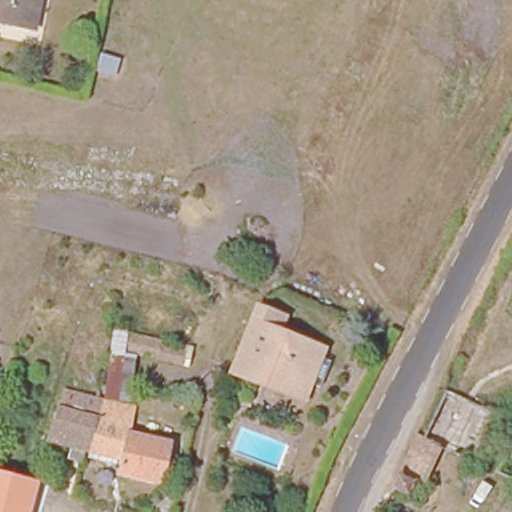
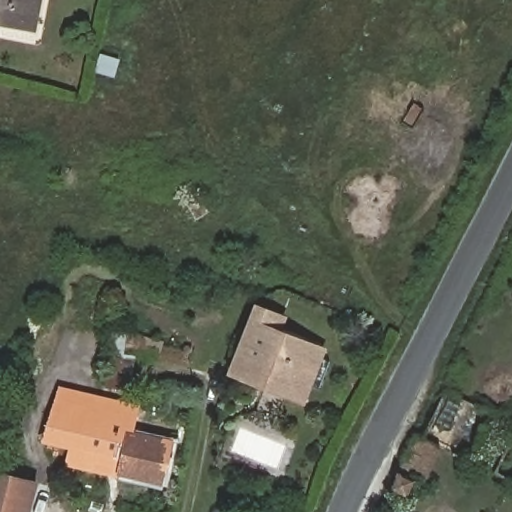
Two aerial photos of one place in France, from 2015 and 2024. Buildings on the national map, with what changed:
unchanged [(0,27),(0,0),(40,0),(33,34),(0,27)]
unchanged [(128,64),(122,82),(104,77),(110,58),(128,64)]
unchanged [(272,338),(318,357),(301,400),(258,382),(256,390),(235,382),(260,317),(278,325),(272,338)]
unchanged [(47,446),(63,395),(97,402),(99,392),(105,392),(113,335),(127,338),(124,360),(135,362),(128,411),(134,412),(128,438),(170,447),(160,489),(119,479),(122,466),(47,446)]
unchanged [(161,347),(160,351),(186,357),(187,352),(193,353),(189,372),(135,358),(135,362),(124,360),(127,338),(161,347)]
unchanged [(418,432),(443,445),(422,486),(412,478),(408,491),(400,490),(389,480),(418,432)]
unchanged [(29,512),(0,512),(0,474),(37,484),(29,512)]

